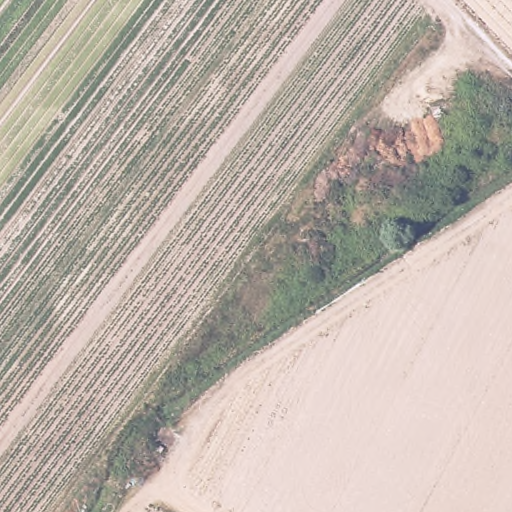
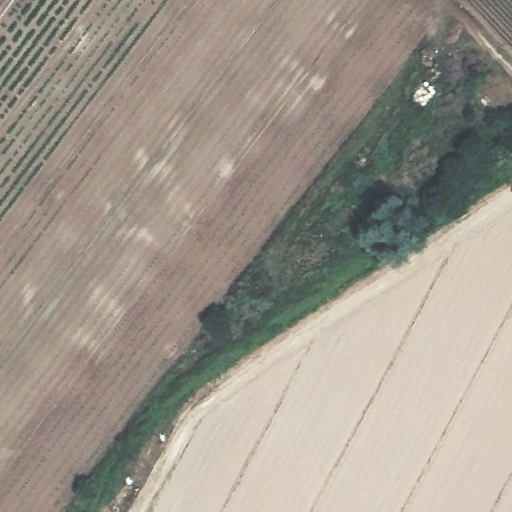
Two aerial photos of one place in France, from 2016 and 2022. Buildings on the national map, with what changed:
[]

